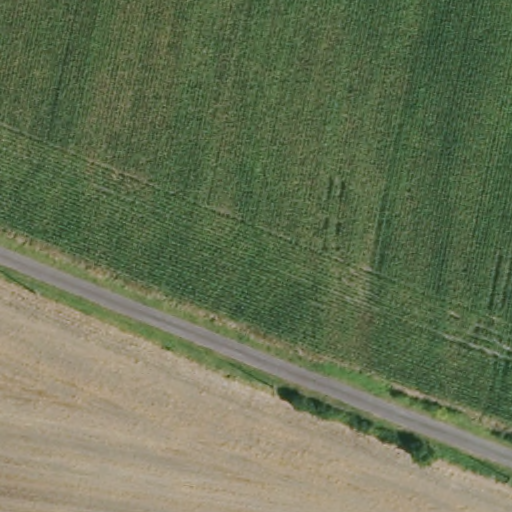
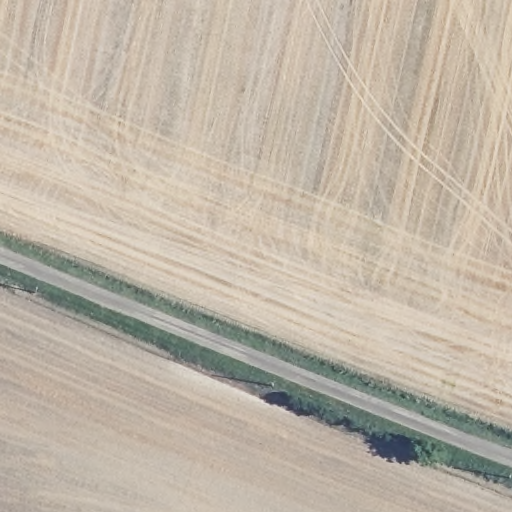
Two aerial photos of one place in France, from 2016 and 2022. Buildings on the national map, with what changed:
[]

